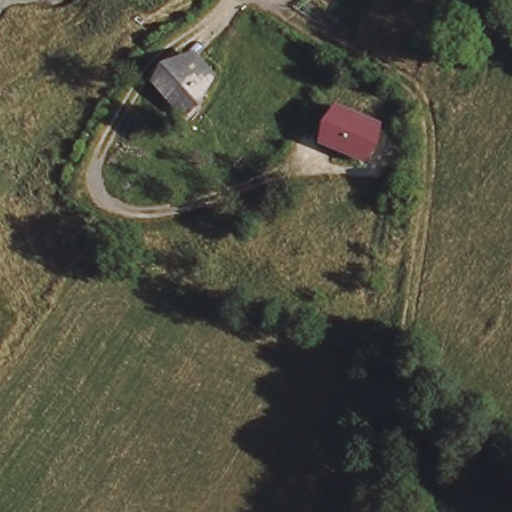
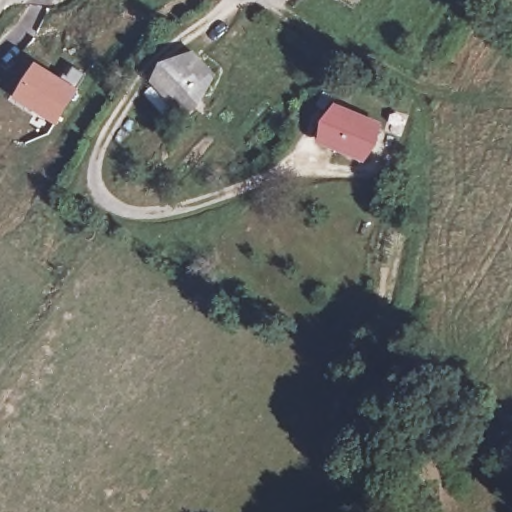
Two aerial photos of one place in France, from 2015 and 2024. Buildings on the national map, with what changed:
unchanged [(156,82),(182,57),(192,50),(217,78),(210,87),(184,112),(156,82)]
new [(38,62),(79,88),(55,124),(15,98),(38,62)]
unchanged [(360,160),(326,147),(342,108),(377,122),(360,160)]

